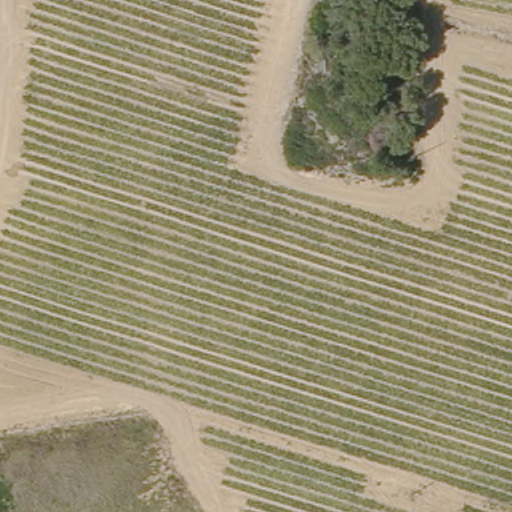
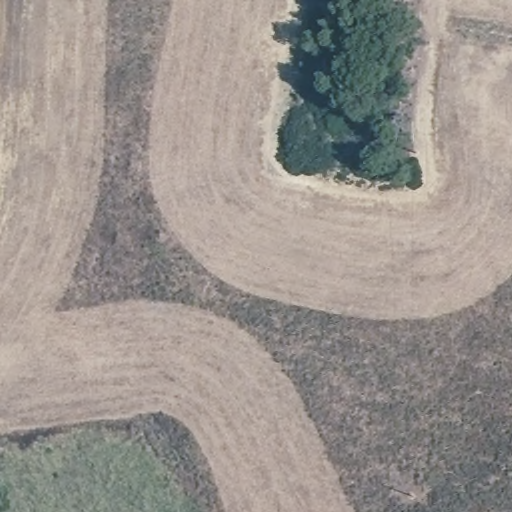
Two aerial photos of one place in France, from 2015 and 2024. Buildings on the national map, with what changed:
[]

